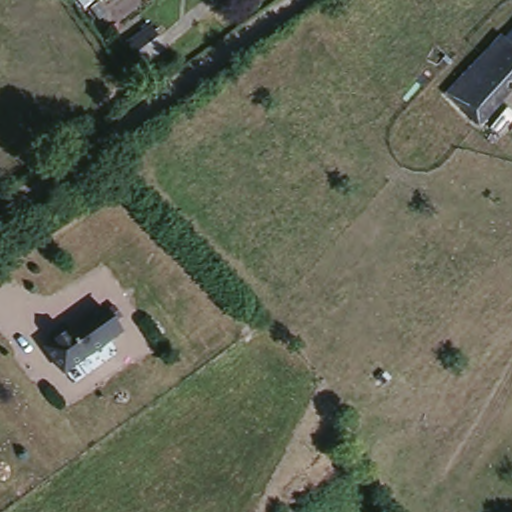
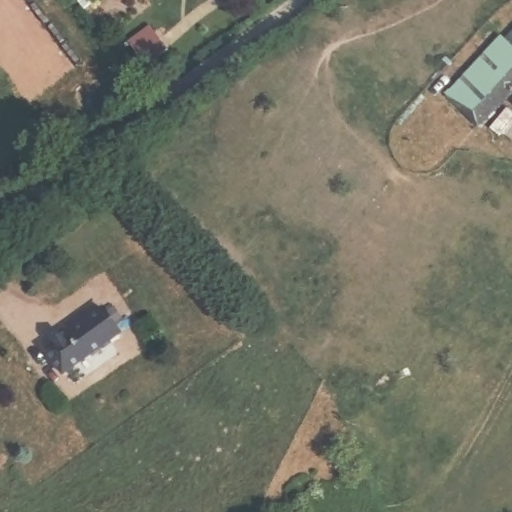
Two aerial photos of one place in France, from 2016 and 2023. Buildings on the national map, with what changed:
unchanged [(499,25),(504,29),(512,22),(512,85),(477,120),(440,80),(499,25)]
unchanged [(151,36),(164,57),(141,72),(130,49),(151,36)]
unchanged [(41,346),(99,306),(116,331),(59,371),(41,346)]
unchanged [(370,375),(382,392),(369,404),(357,386),(370,375)]

